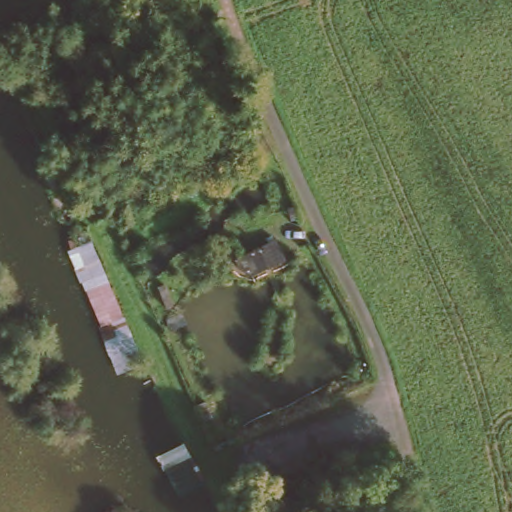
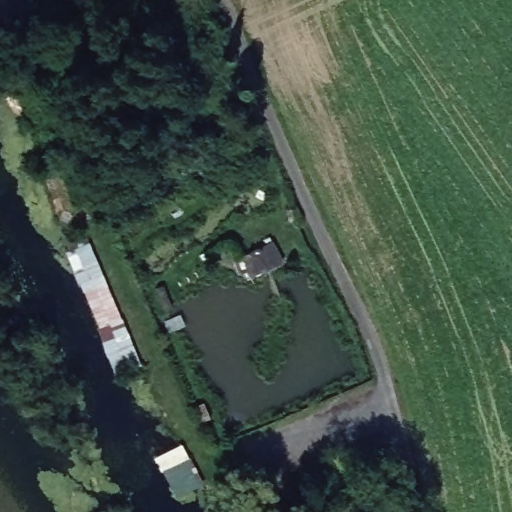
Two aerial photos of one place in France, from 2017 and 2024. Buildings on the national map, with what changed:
unchanged [(115,373),(65,249),(92,239),(144,365),(115,373)]
unchanged [(248,276),(237,258),(274,242),(285,262),(248,276)]
unchanged [(152,453),(182,439),(193,460),(187,464),(197,485),(177,495),(152,453)]

